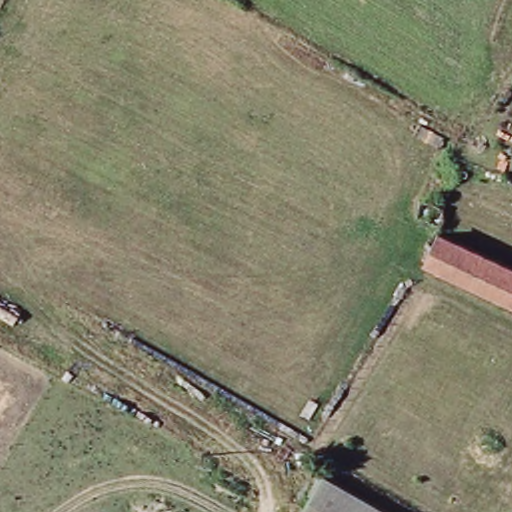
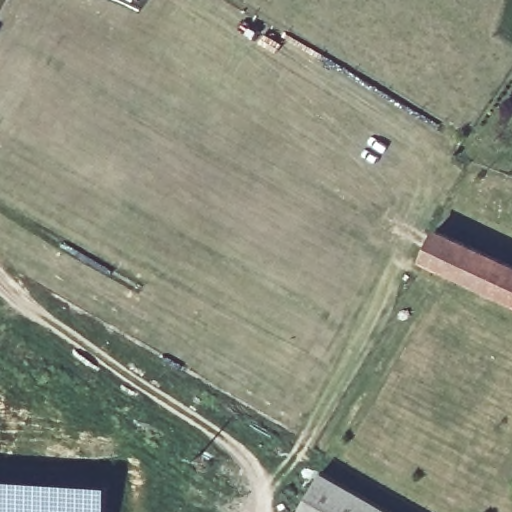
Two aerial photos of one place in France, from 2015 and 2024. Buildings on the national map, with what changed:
unchanged [(423,253),(436,228),(512,262),(512,293),(423,253)]
unchanged [(398,512),(303,512),(326,471),(398,512)]
new [(0,477),(107,483),(106,512),(0,512),(0,477)]

